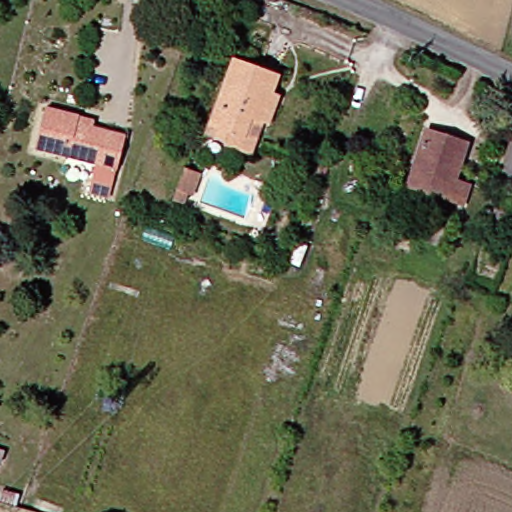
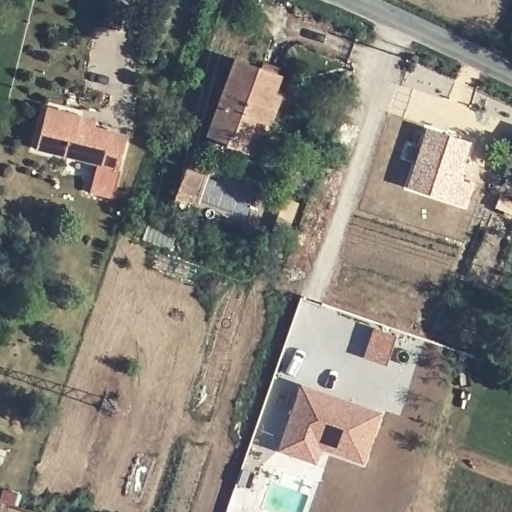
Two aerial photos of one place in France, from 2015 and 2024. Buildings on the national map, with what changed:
unchanged [(231,146),(232,144),(215,136),(240,62),(282,76),(265,125),(255,155),(231,146)]
unchanged [(103,170),(45,154),(55,116),(86,124),(84,133),(130,144),(112,201),(96,195),(103,170)]
unchanged [(475,189),(468,206),(415,188),(433,133),(453,139),(474,146),(470,159),(461,184),(475,189)]
unchanged [(508,177),(512,165),(512,179),(508,177)]
unchanged [(196,171),(186,194),(181,192),(189,169),(196,171)]
new [(386,364),(365,358),(372,329),(396,336),(386,364)]
new [(312,464),(276,451),(302,384),(381,412),(362,467),(318,452),(312,464)]

